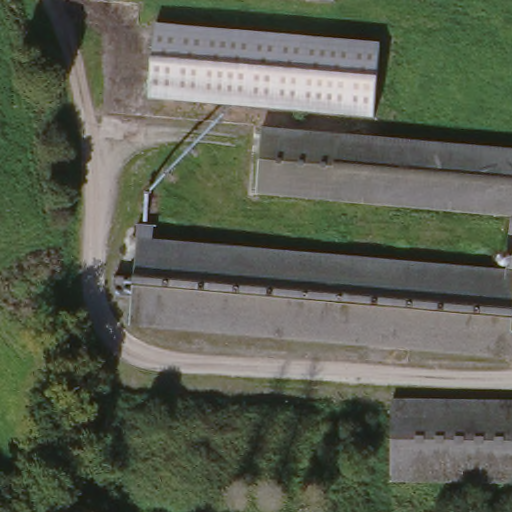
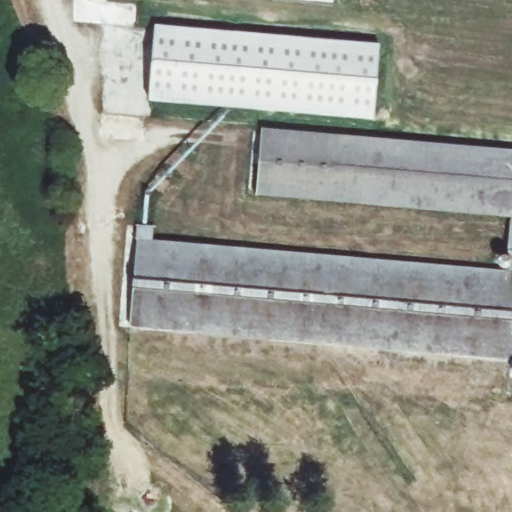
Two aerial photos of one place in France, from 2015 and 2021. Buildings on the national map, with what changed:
unchanged [(246,0),(337,0),(337,8),(246,0)]
unchanged [(365,123),(141,103),(148,31),(371,50),(365,123)]
unchanged [(503,337),(512,338),(512,362),(130,330),(138,247),(507,278),(509,222),(259,199),(265,133),(512,156),(512,313),(507,313),(503,337)]
demolished [(400,416),(512,417),(512,496),(399,493),(400,416)]

